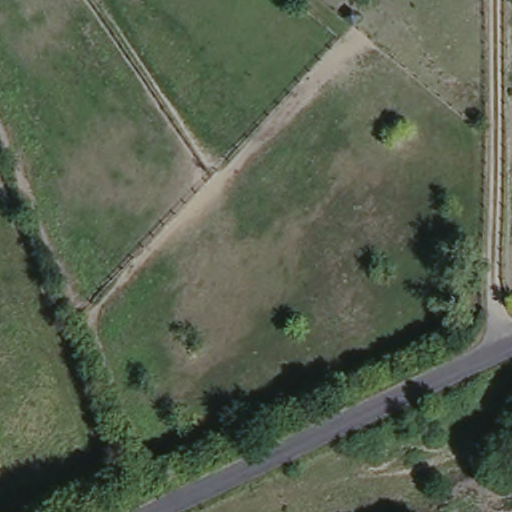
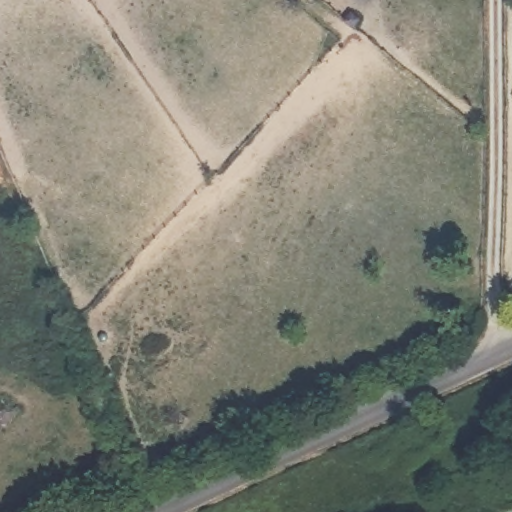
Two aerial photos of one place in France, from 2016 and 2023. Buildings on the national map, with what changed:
unchanged [(354,20),(343,33),(336,25),(347,12),(354,20)]

